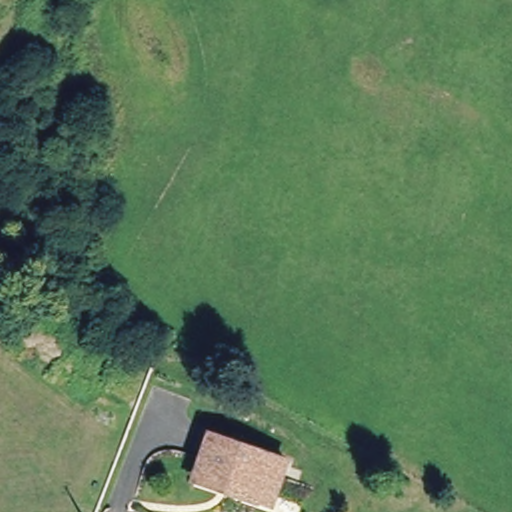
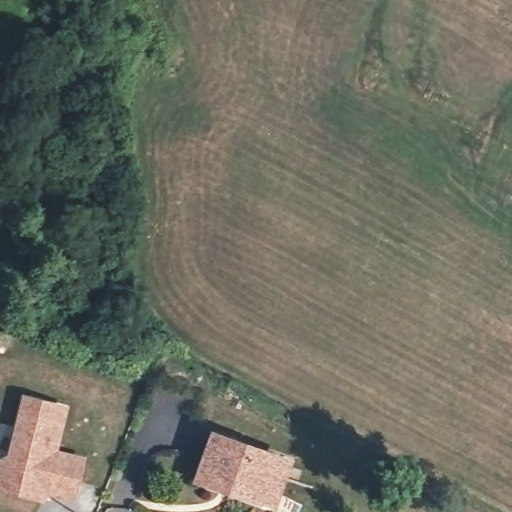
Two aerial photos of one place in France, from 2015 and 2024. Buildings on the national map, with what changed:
new [(57,451),(85,457),(72,503),(44,496),(42,505),(0,493),(0,458),(6,455),(20,395),(67,407),(57,451)]
unchanged [(267,509),(195,483),(212,439),(283,464),(267,509)]

